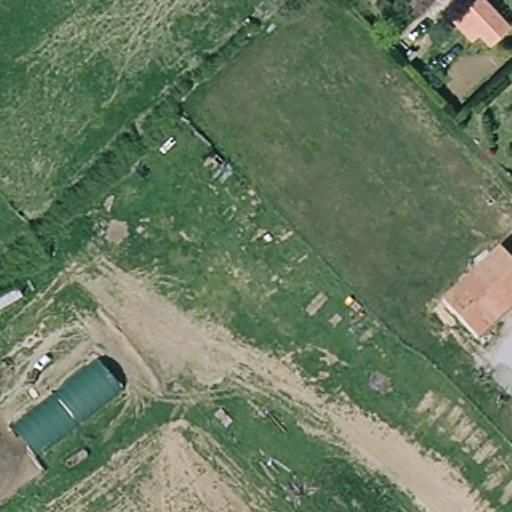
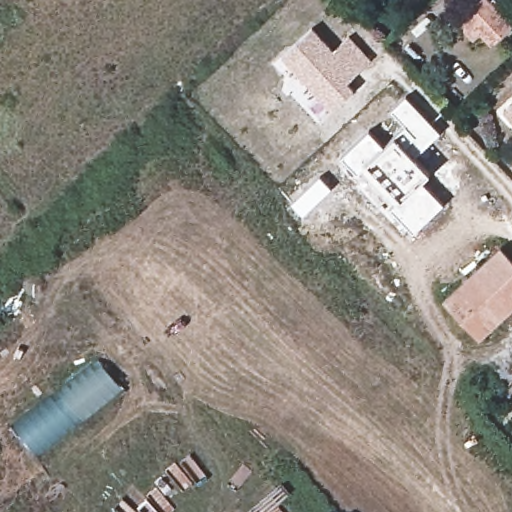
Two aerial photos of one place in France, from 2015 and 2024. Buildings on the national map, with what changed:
unchanged [(480,33),(474,39),(458,20),(481,0),(492,0),(512,21),(512,27),(492,47),(480,33)]
new [(312,29),(334,52),(350,38),(371,62),(355,76),(352,73),(344,80),(354,91),(332,111),(282,57),(312,29)]
new [(383,144),(393,134),(405,124),(390,108),(405,94),(440,130),(413,153),(430,171),(421,178),(444,202),(413,231),(390,207),(399,198),(365,162),(355,172),(340,155),(367,129),(383,144)]
new [(512,99),(512,121),(502,109),(512,99)]
unchanged [(471,285),(508,249),(512,253),(512,318),(507,323),(471,285)]
unchanged [(447,308),(455,300),(471,285),(507,323),(490,338),(483,345),(447,308)]
unchanged [(12,426),(100,356),(132,393),(40,461),(12,426)]

